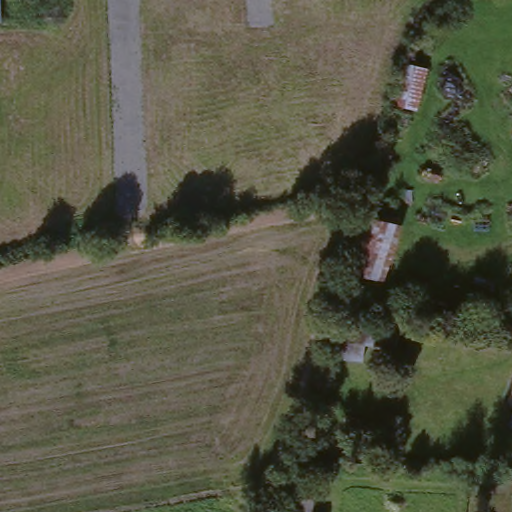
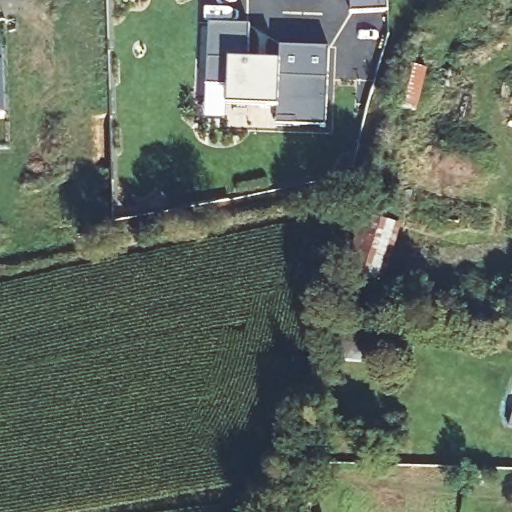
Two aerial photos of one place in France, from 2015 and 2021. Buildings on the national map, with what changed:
new [(390,12),(353,14),(352,0),(389,0),(390,12)]
new [(211,22),(252,24),(250,59),(281,60),(282,45),(332,48),(328,127),(296,125),(296,119),(279,118),(279,107),(263,106),(263,99),(228,98),(229,85),(208,84),(211,22)]
new [(3,63),(5,115),(0,115),(0,47),(3,47),(3,63)]
unchanged [(394,105),(405,65),(425,70),(416,110),(394,105)]
unchanged [(346,276),(364,220),(399,232),(380,287),(346,276)]
unchanged [(336,305),(341,284),(362,288),(357,309),(336,305)]
unchanged [(368,347),(366,362),(329,359),(333,330),(398,335),(396,348),(368,347)]
unchanged [(284,489),(314,496),(310,512),(304,512),(279,506),(284,489)]

